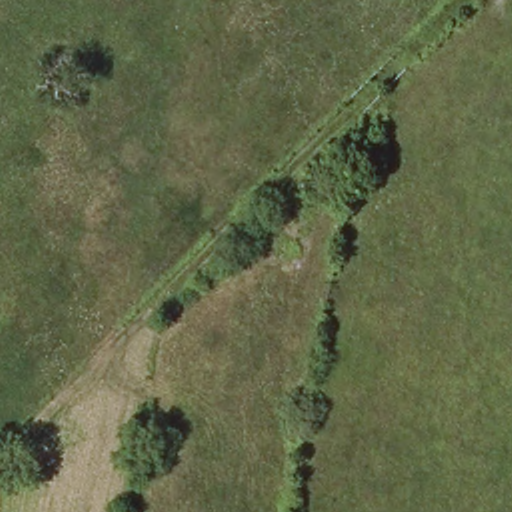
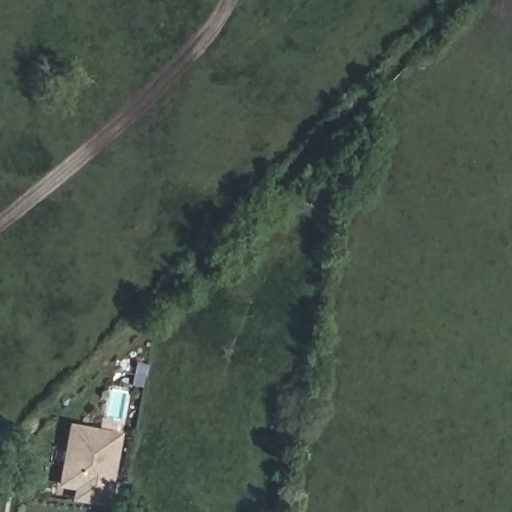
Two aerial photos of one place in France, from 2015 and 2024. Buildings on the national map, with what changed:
new [(67,484),(75,436),(77,425),(87,428),(124,435),(111,505),(88,500),(81,499),(83,486),(67,484)]

